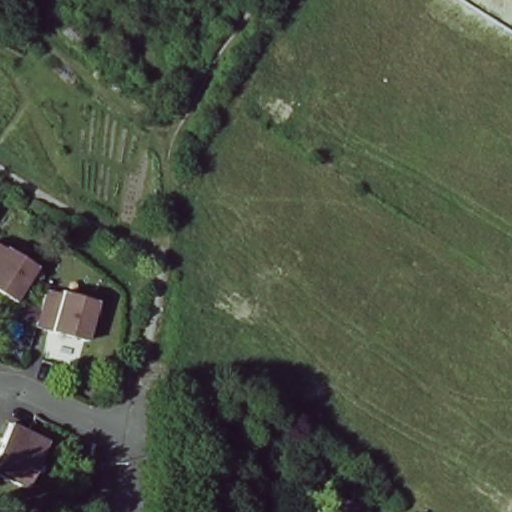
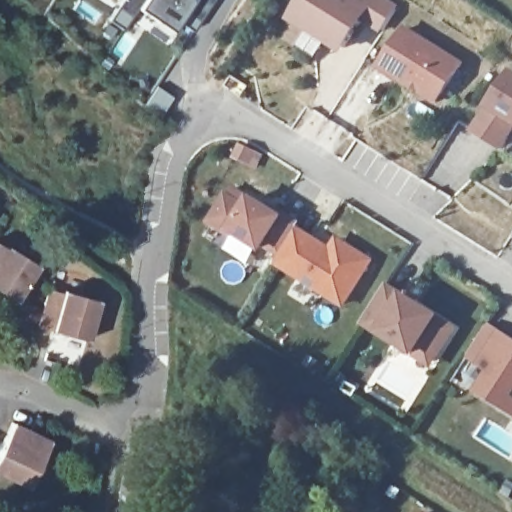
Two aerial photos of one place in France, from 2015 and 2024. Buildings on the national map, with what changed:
new [(103,0),(121,0),(116,9),(103,0)]
new [(178,24),(166,40),(132,19),(144,0),(213,0),(193,33),(178,24)]
new [(389,0),(396,5),(380,33),(364,24),(343,56),(289,23),(303,0),(389,0)]
new [(404,26),(463,62),(436,107),(403,86),(376,71),(404,26)]
new [(511,71),(512,72),(512,133),(502,150),(473,131),(511,71)]
new [(274,265),(278,257),(266,249),(263,254),(231,234),(229,238),(206,223),(223,192),(228,194),(232,187),(267,205),(269,202),(301,221),(297,226),(330,246),(335,237),(373,260),(343,309),(274,265)]
unchanged [(0,291),(0,245),(5,249),(7,247),(38,266),(15,302),(0,291)]
new [(361,326),(387,284),(458,327),(431,369),(361,326)]
unchanged [(88,341),(38,326),(48,289),(63,293),(64,291),(99,301),(88,341)]
new [(477,394),(488,373),(467,359),(488,325),(512,339),(512,416),(477,394)]
unchanged [(0,448),(12,422),(51,441),(28,488),(0,474),(0,448)]
unchanged [(339,499),(368,504),(366,512),(336,512),(339,499)]

